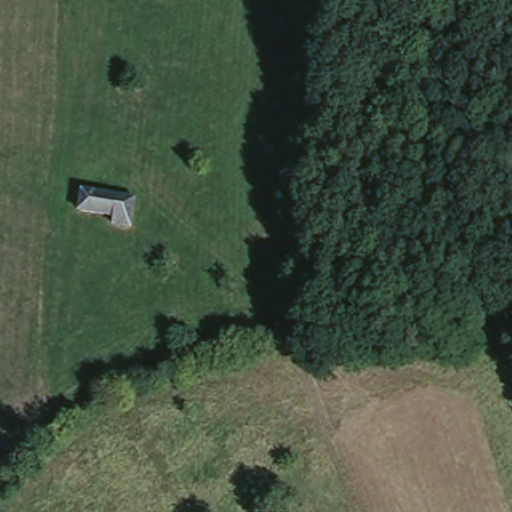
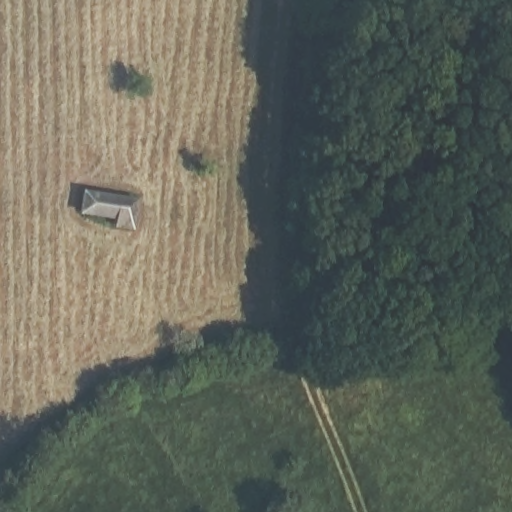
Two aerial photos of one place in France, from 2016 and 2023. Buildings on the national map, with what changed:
unchanged [(133,199),(129,229),(111,225),(111,217),(78,212),(80,192),(133,199)]

